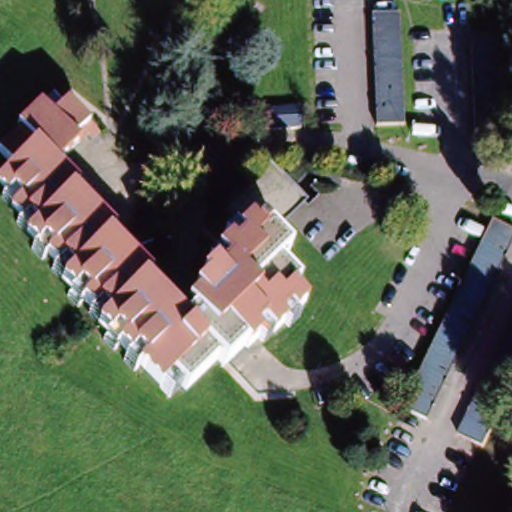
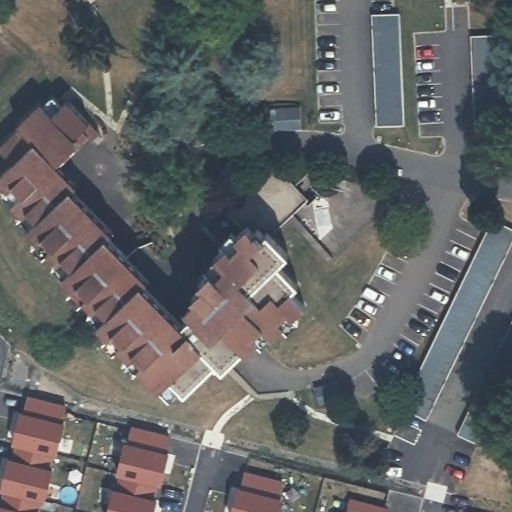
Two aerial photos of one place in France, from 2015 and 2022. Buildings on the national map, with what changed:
unchanged [(379,131),(374,18),(402,17),(406,130),(379,131)]
unchanged [(501,40),(506,151),(478,152),(473,41),(501,40)]
unchanged [(187,398),(173,383),(163,393),(101,330),(106,325),(66,283),(71,277),(30,236),(36,231),(15,210),(20,205),(0,185),(17,167),(2,152),(24,132),(21,130),(43,109),(55,121),(71,106),(103,137),(96,145),(91,140),(81,149),(76,145),(70,150),(75,155),(60,170),(49,157),(42,164),(47,169),(48,167),(64,184),(69,179),(80,190),(75,196),(115,237),(110,244),(151,285),(145,290),(185,330),(195,321),(193,320),(203,310),(195,302),(206,291),(203,287),(214,277),(218,282),(228,272),(218,262),(229,251),(235,257),(244,247),(239,241),(248,230),(270,237),(291,257),(280,268),(300,289),(293,295),(307,310),(296,320),(291,314),(281,324),(286,330),(275,340),(264,330),(254,340),(259,345),(249,356),(246,352),(226,373),(219,366),(187,398)]
unchanged [(272,170),(305,204),(270,237),(248,230),(229,211),(272,170)]
unchanged [(512,232),(512,251),(428,423),(403,410),(494,224),(512,232)]
unchanged [(512,320),(512,384),(480,450),(454,438),(512,320)]
new [(61,408),(57,426),(59,427),(52,457),(49,456),(45,470),(47,471),(41,501),(38,500),(35,512),(0,512),(0,496),(1,492),(0,492),(0,482),(5,461),(9,461),(14,445),(11,444),(18,416),(20,416),(24,400),(61,408)]
new [(114,475),(121,445),(125,446),(129,430),(165,438),(160,457),(164,458),(157,486),(117,476),(114,475)]
new [(236,491),(241,475),(278,485),(274,500),(277,501),(274,512),(228,512),(233,490),(236,491)]
new [(109,491),(112,492),(117,476),(153,485),(149,501),(153,502),(150,512),(104,512),(109,491)]
new [(346,501),(383,511),(383,512),(343,512),(346,501)]

